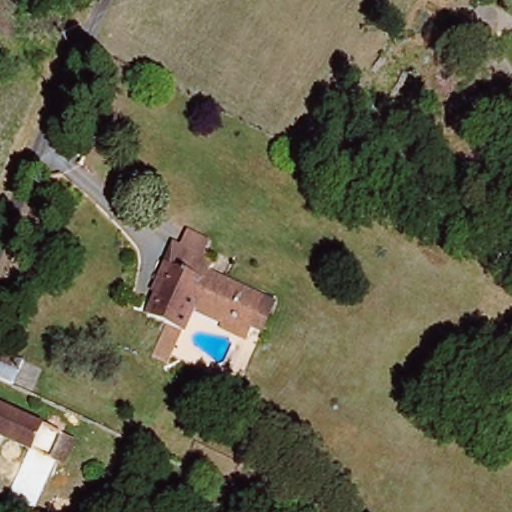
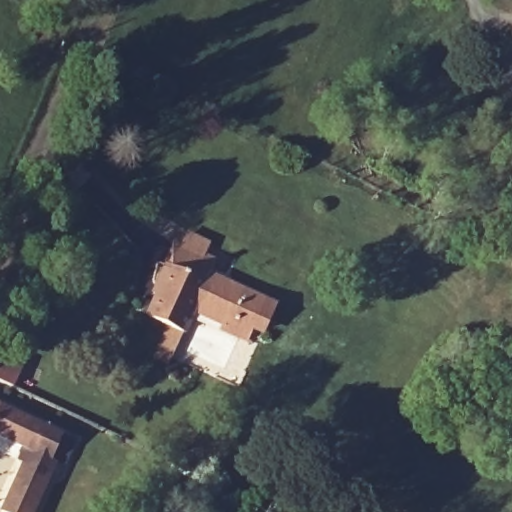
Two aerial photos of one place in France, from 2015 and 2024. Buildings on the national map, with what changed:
unchanged [(143,319),(176,248),(183,232),(206,245),(203,253),(214,259),(207,274),(266,303),(277,308),(263,337),(253,332),(248,342),(223,330),(225,325),(191,309),(179,335),(163,369),(147,360),(163,328),(143,319)]
unchanged [(0,350),(25,362),(14,386),(0,379),(0,350)]
unchanged [(0,441),(0,410),(61,439),(76,446),(64,471),(50,463),(18,450),(0,441)]
new [(0,512),(23,461),(15,458),(18,450),(50,463),(57,466),(36,512),(0,512)]

